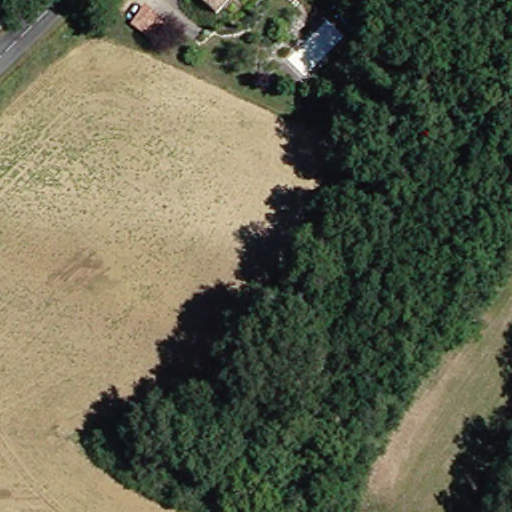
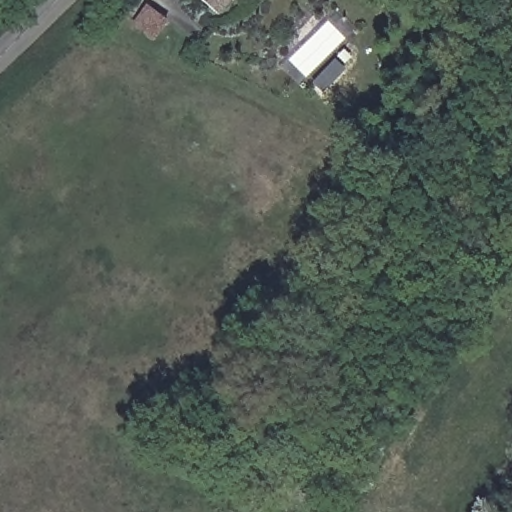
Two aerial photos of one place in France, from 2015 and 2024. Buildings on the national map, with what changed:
unchanged [(207,0),(231,0),(222,12),(207,0)]

